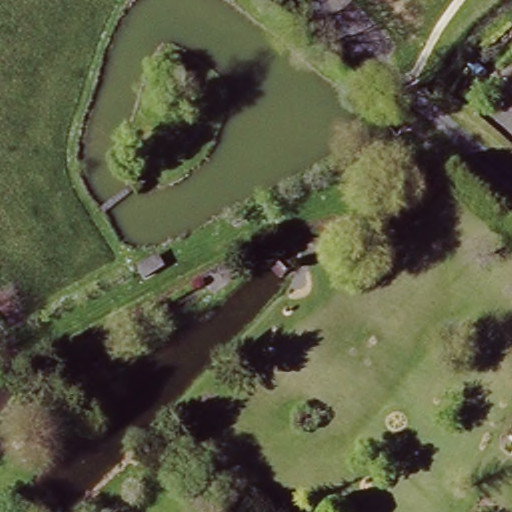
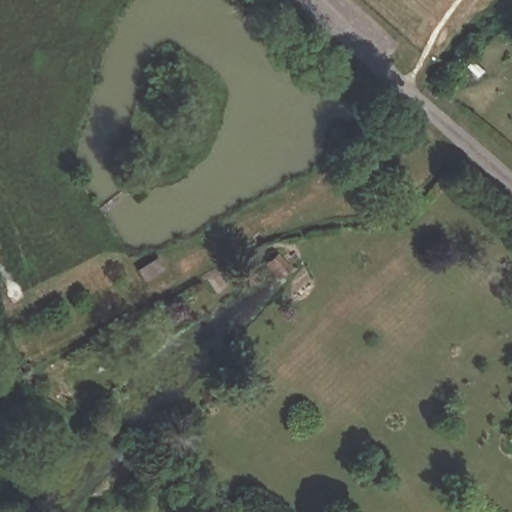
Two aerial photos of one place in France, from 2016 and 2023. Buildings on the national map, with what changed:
unchanged [(282,272),(270,257),(280,250),(292,265),(287,268),(282,272)]

